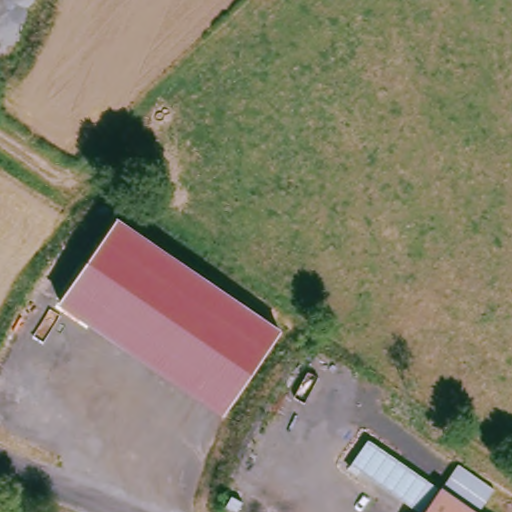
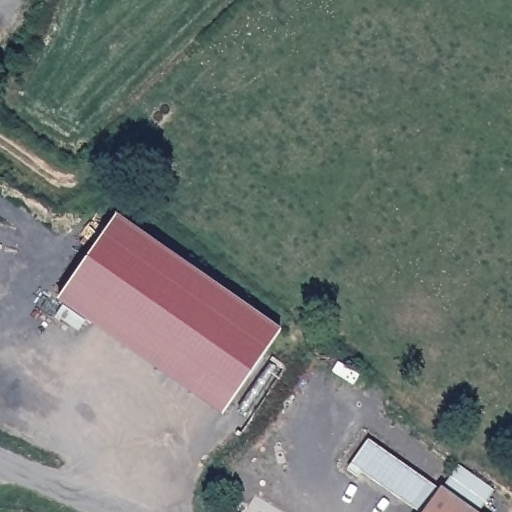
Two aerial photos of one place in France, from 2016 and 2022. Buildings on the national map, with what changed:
unchanged [(116,214),(278,328),(220,413),(57,300),(116,214)]
unchanged [(411,512),(398,512),(370,492),(395,455),(433,480),(411,512)]
unchanged [(423,512),(444,485),(477,512),(423,512)]

